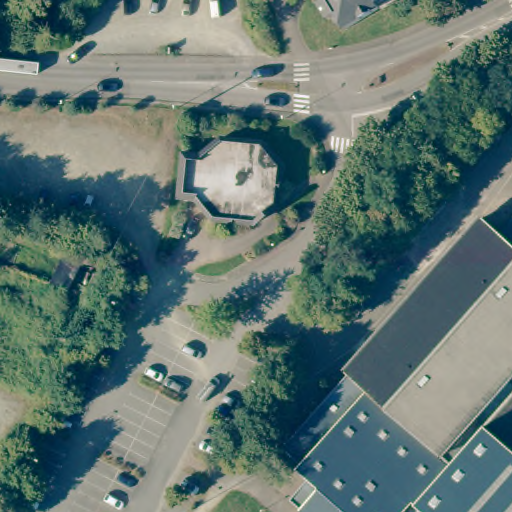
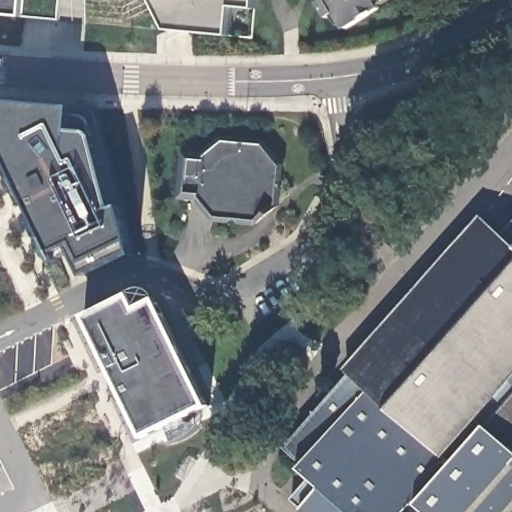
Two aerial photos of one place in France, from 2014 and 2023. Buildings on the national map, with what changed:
new [(22,17),(0,15),(0,0),(24,0),(22,17)]
new [(255,9),(232,7),(229,37),(169,30),(153,0),(256,0),(255,9)]
unchanged [(376,0),(379,7),(345,27),(336,12),(327,17),(318,3),(322,0),(376,0)]
demolished [(32,27),(35,9),(64,13),(61,32),(32,27)]
new [(74,108),(97,111),(124,207),(135,253),(84,273),(71,246),(55,253),(0,143),(0,101),(74,108)]
unchanged [(203,156),(224,138),(267,142),(286,164),(282,205),(259,223),(216,220),(202,201),(182,198),(187,154),(203,156)]
unchanged [(315,478),(305,468),(307,465),(287,448),(352,376),(347,370),(487,220),(505,236),(512,227),(512,512),(309,512),(295,500),(315,478)]
new [(86,317),(132,295),(139,309),(157,301),(209,407),(146,436),(86,317)]

